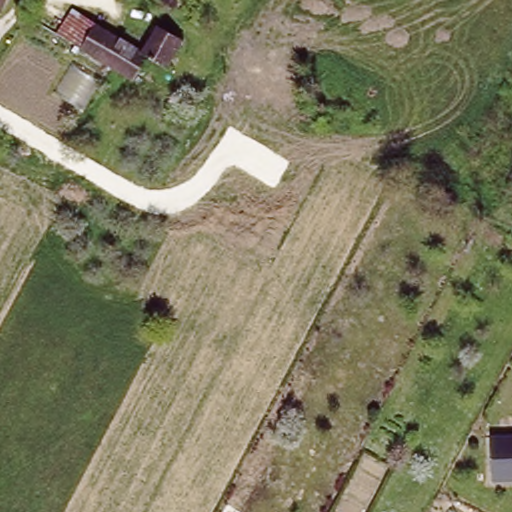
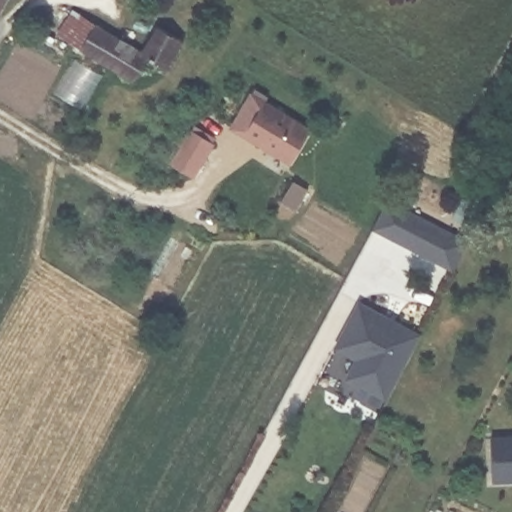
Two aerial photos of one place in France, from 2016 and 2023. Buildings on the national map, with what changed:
unchanged [(6,0),(0,12),(0,0),(6,0)]
unchanged [(139,80),(129,74),(116,66),(85,49),(100,24),(148,51),(164,25),(190,40),(189,42),(174,65),(172,69),(171,69),(162,63),(153,58),(148,66),(139,80)]
new [(253,91),(266,100),(312,127),(289,168),(279,161),(283,158),(243,134),(229,127),(253,91)]
new [(195,177),(171,161),(192,130),(216,144),(195,177)]
new [(373,229),(388,199),(469,241),(454,270),(373,229)]
new [(387,399),(345,378),(346,376),(333,370),(342,352),(336,348),(361,302),(423,333),(387,399)]
unchanged [(512,432),(512,475),(492,476),(491,433),(512,432)]

